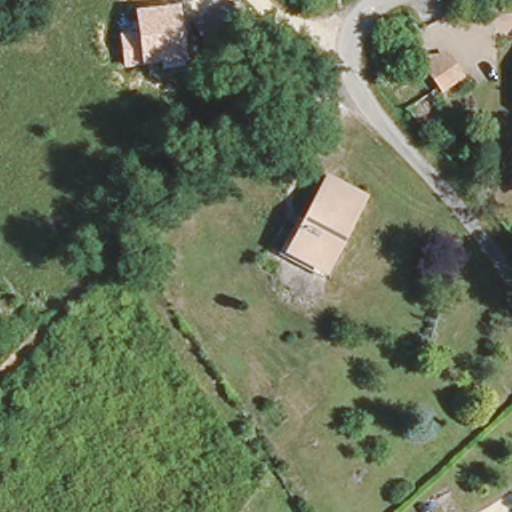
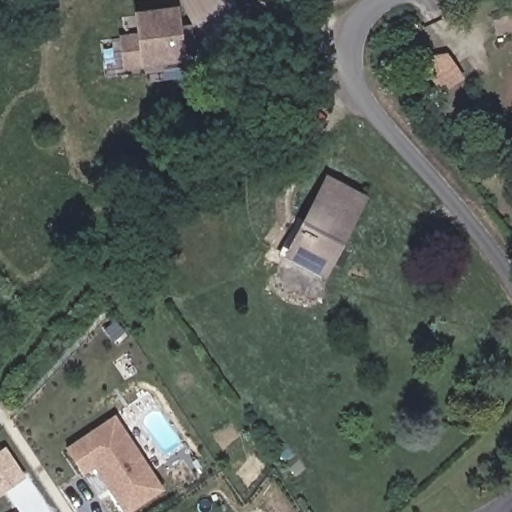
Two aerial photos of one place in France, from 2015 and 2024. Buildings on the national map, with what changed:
unchanged [(184,66),(159,69),(159,65),(123,68),(120,35),(136,33),(134,10),(178,5),(184,66)]
unchanged [(425,55),(444,49),(457,82),(439,89),(437,86),(425,55)]
unchanged [(512,97),(512,102),(510,101),(512,97)]
unchanged [(323,278),(279,255),(321,170),(368,196),(323,278)]
new [(83,473),(67,448),(117,415),(165,491),(131,512),(125,512),(110,489),(104,480),(95,466),(83,473)]
new [(27,477),(0,495),(0,450),(6,446),(27,477)]

